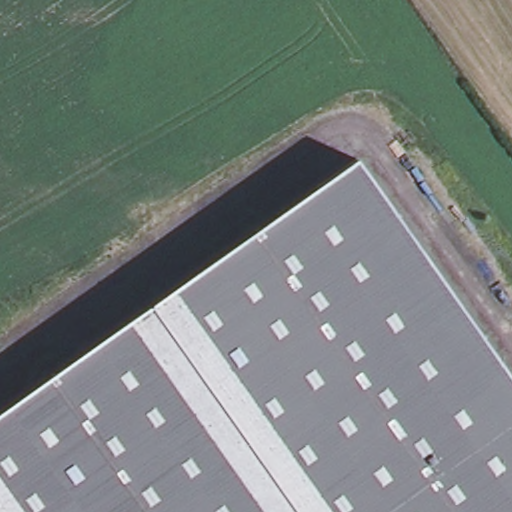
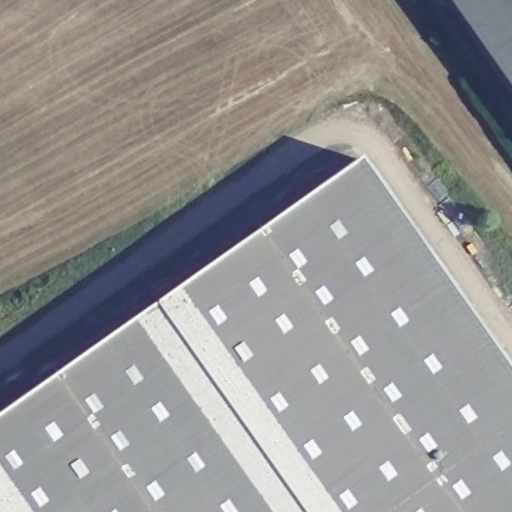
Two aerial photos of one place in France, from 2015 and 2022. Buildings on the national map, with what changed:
new [(458,0),(512,0),(512,89),(452,4),(458,0)]
unchanged [(357,159),(512,378),(512,512),(0,512),(0,412),(357,159)]

